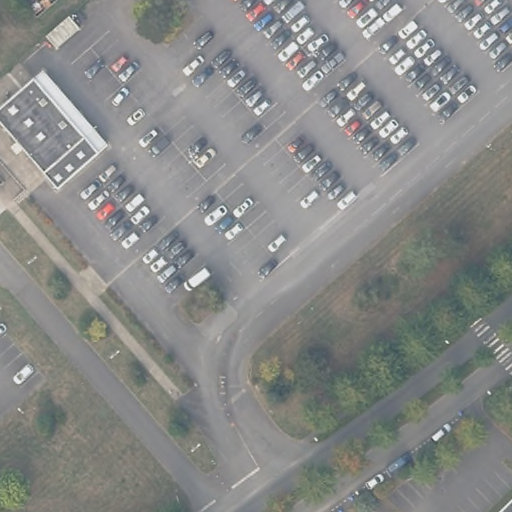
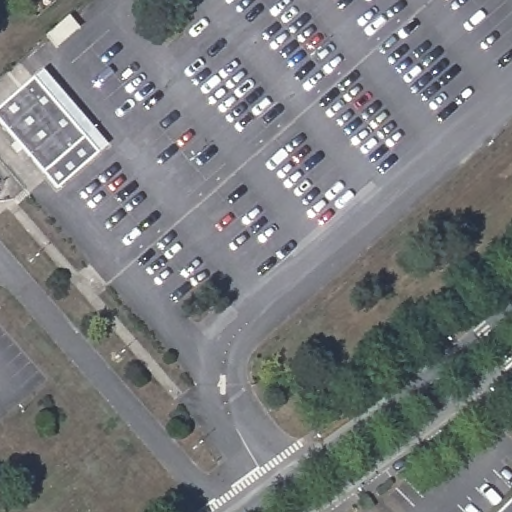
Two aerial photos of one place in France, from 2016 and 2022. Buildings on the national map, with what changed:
unchanged [(37,62),(102,135),(92,144),(27,71),(37,62)]
unchanged [(51,179),(0,121),(0,94),(27,71),(92,144),(51,179)]
unchanged [(502,512),(512,502),(512,512),(502,512)]

